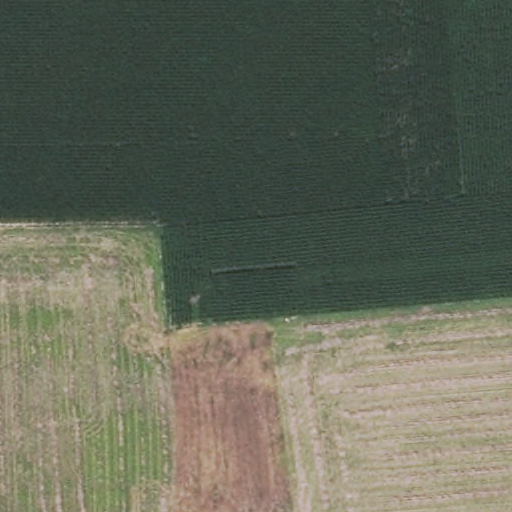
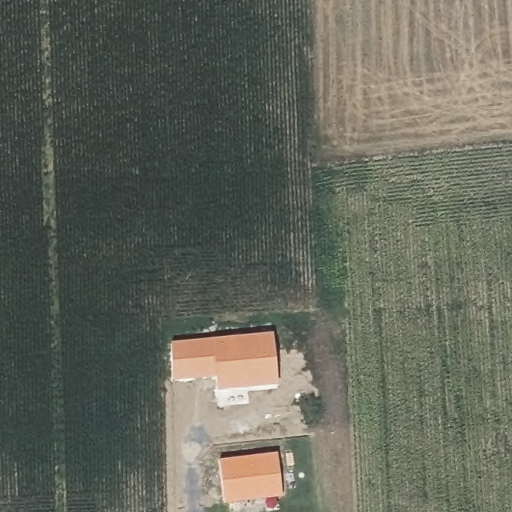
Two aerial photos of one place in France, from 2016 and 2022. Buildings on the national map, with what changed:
new [(278,384),(218,390),(216,375),(202,377),(173,380),(171,345),(198,342),(212,341),(272,335),(278,384)]
new [(277,452),(282,494),(224,500),(219,459),(277,452)]

